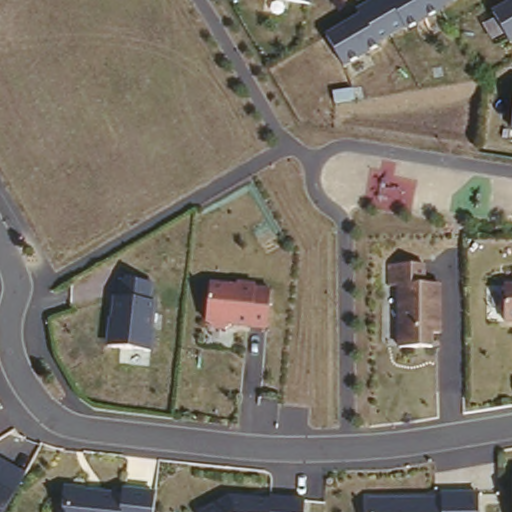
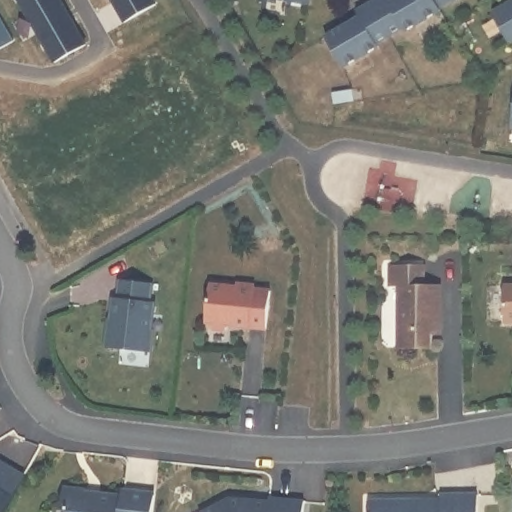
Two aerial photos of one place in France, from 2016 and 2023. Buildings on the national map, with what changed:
new [(63,0),(87,43),(55,63),(19,0),(63,0)]
new [(156,0),(158,4),(125,23),(112,0),(156,0)]
unchanged [(297,0),(311,0),(310,2),(297,0)]
unchanged [(364,10),(361,7),(372,0),(452,0),(442,6),(442,8),(409,29),(406,26),(379,42),(380,44),(346,66),(327,35),(364,10)]
unchanged [(512,0),(512,39),(494,9),(510,0),(512,0)]
unchanged [(401,289),(395,289),(395,264),(428,264),(428,282),(443,282),(443,332),(435,332),(436,347),(400,347),(401,289)]
unchanged [(117,293),(119,292),(121,278),(156,283),(155,299),(150,349),(110,346),(117,293)]
unchanged [(242,284),(242,280),(261,282),(261,285),(273,286),(268,328),(209,323),(212,282),(242,284)]
unchanged [(505,282),(512,282),(512,320),(504,320),(505,282)]
unchanged [(0,461),(24,474),(4,512),(0,512),(0,461)]
unchanged [(123,489),(124,485),(156,488),(154,512),(66,512),(68,487),(123,489)]
unchanged [(374,493),(443,497),(443,491),(479,491),(480,512),(374,512),(374,493)]
unchanged [(235,494),(274,496),(273,494),(305,496),(304,512),(205,512),(204,511),(235,494)]

